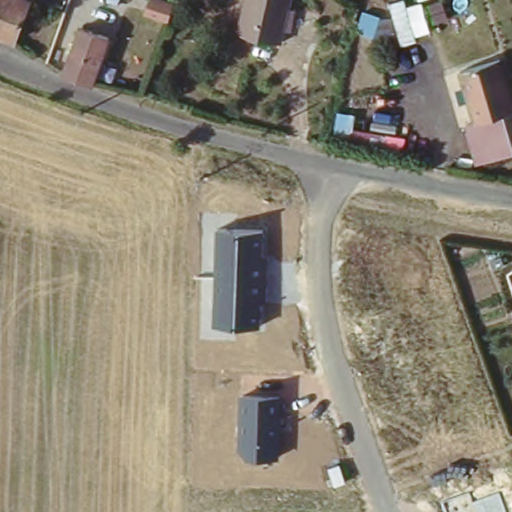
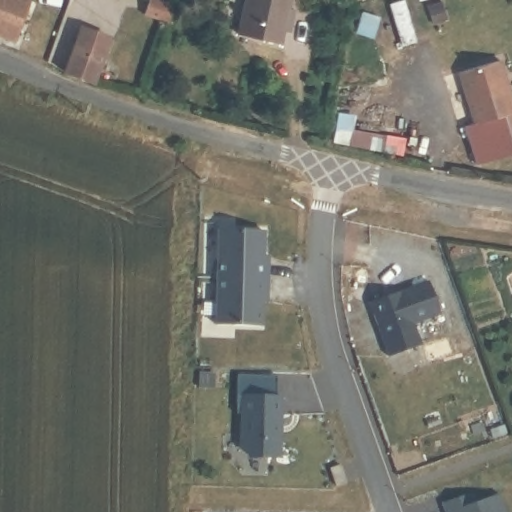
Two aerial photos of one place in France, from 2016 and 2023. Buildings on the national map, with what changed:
unchanged [(22,44),(0,36),(0,0),(26,0),(36,4),(22,44)]
new [(172,0),(178,2),(171,20),(144,10),(147,0),(172,0)]
unchanged [(245,40),(251,0),(295,0),(288,46),(245,40)]
unchanged [(83,30),(113,40),(97,85),(68,74),(83,30)]
unchanged [(512,98),(512,155),(477,166),(466,130),(479,125),(464,74),(502,63),(512,98)]
unchanged [(266,229),(265,254),(270,254),(269,301),(264,301),(263,327),(214,325),(216,226),(266,229)]
new [(431,283),(443,316),(417,325),(424,346),(391,358),(372,305),(431,283)]
unchanged [(282,395),(280,459),(246,457),(237,446),(240,391),(282,395)]
unchanged [(442,503),(468,493),(471,502),(499,493),(506,512),(445,512),(442,503)]

